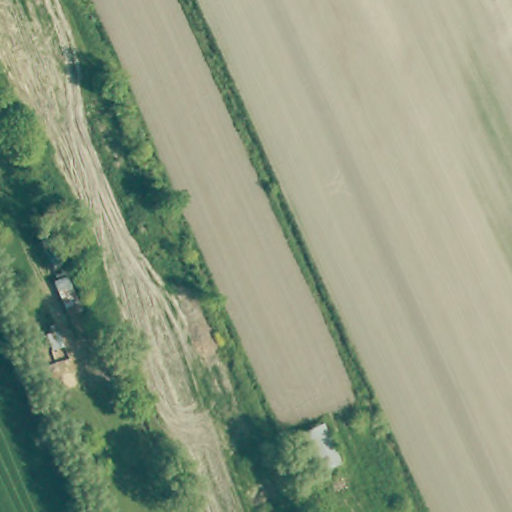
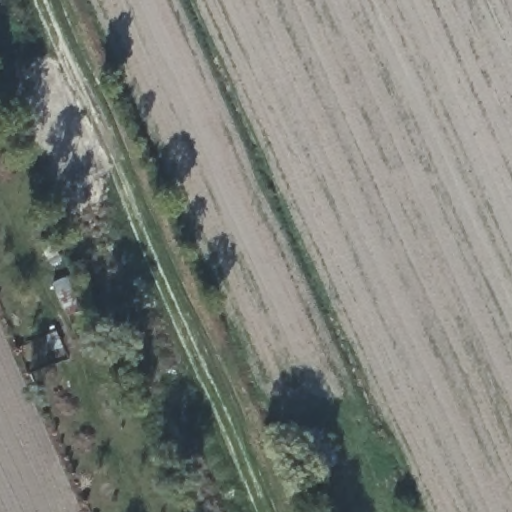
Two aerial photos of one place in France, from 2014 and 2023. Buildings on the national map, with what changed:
unchanged [(342,465),(319,474),(303,436),(324,426),(342,465)]

